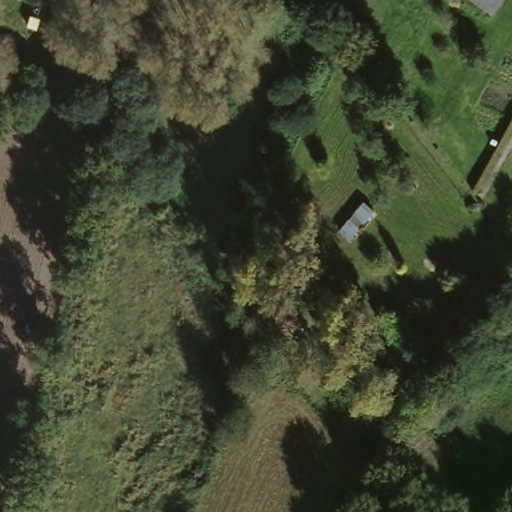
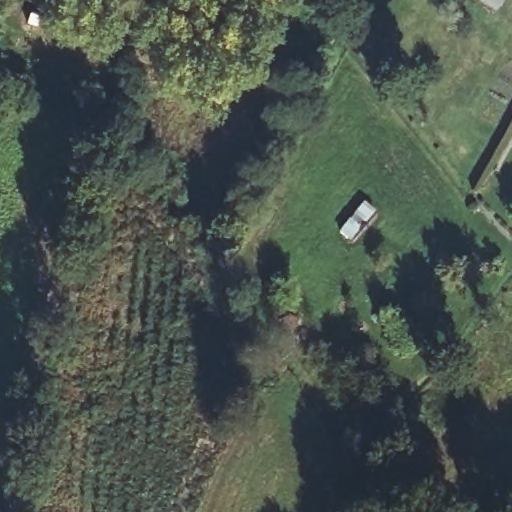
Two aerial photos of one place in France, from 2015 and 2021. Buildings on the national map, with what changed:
unchanged [(492,12),(474,0),(501,0),(492,12)]

